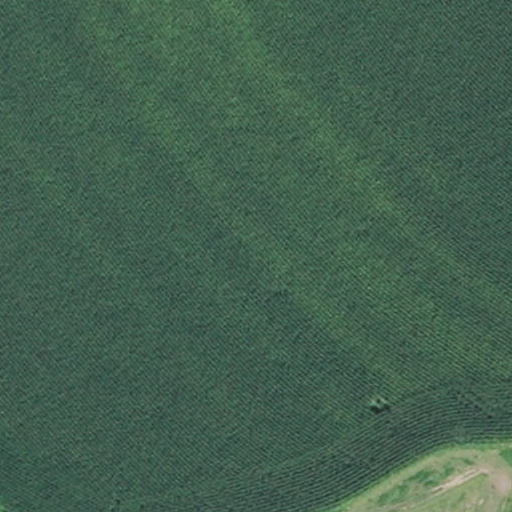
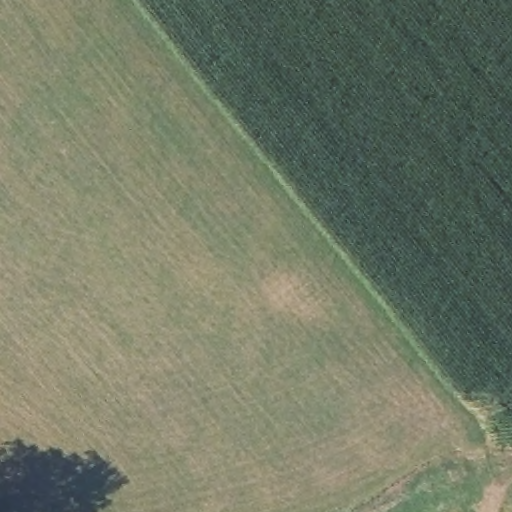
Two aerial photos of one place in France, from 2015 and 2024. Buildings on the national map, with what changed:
[]

